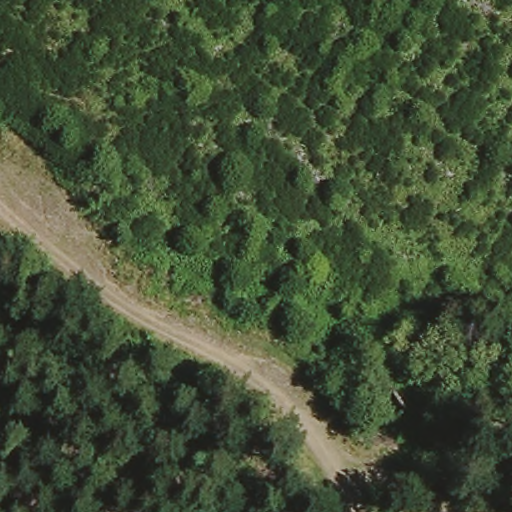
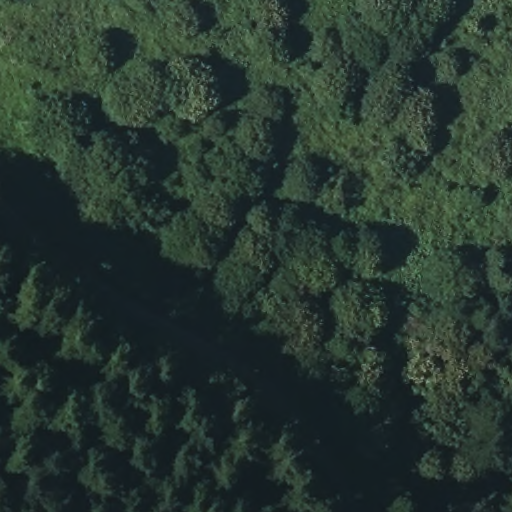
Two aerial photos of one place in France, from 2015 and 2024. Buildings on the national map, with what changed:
[]

